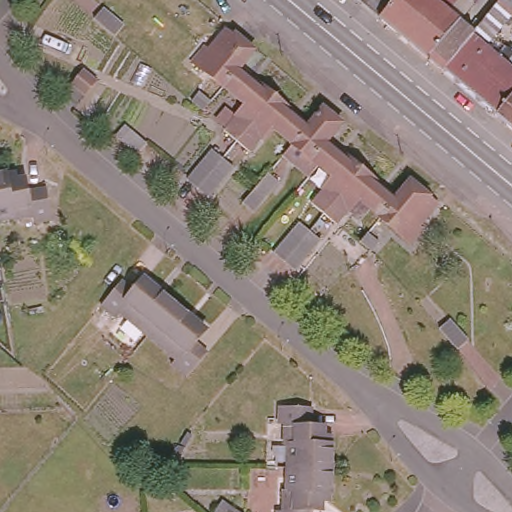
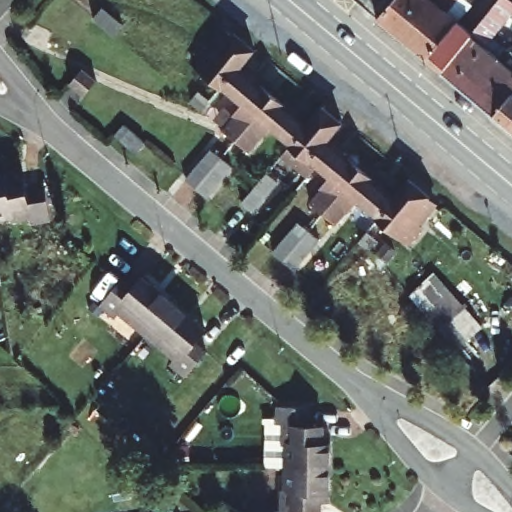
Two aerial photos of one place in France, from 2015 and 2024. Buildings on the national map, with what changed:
unchanged [(354,1),(354,0),(425,0),(396,36),(354,1)]
unchanged [(471,31),(467,37),(439,72),(396,36),(425,0),(454,0),(446,11),(471,31)]
unchanged [(495,32),(510,46),(512,42),(512,89),(492,113),(490,115),(449,80),(439,72),(467,37),(471,31),(496,0),(510,0),(512,1),(512,11),(495,32)]
unchanged [(125,22),(117,34),(95,17),(102,7),(125,22)]
unchanged [(188,53),(200,38),(205,42),(222,22),(227,26),(229,25),(250,43),(235,62),(220,80),(188,53)]
unchanged [(77,44),(70,57),(45,45),(52,32),(77,44)]
unchanged [(236,130),(232,135),(217,123),(240,97),(220,80),(235,62),(270,90),(236,130)]
unchanged [(96,81),(84,95),(70,83),(82,69),(96,81)]
unchanged [(194,99),(202,89),(212,98),(205,107),(194,99)]
unchanged [(511,131),(490,115),(492,113),(512,89),(512,132),(511,131)]
unchanged [(292,132),(287,139),(267,122),(246,146),(232,135),(236,130),(270,90),(304,119),(292,132)]
unchanged [(322,135),(305,155),(312,160),(308,165),(302,172),(277,151),(287,139),(292,132),(304,119),(319,101),(337,116),(322,135)]
unchanged [(147,143),(137,154),(115,135),(125,123),(147,143)]
unchanged [(319,208),(305,196),(326,172),(312,160),(305,155),(322,135),(357,163),(319,208)]
unchanged [(212,146),(232,163),(215,184),(207,195),(199,188),(187,178),(212,146)]
unchanged [(376,210),(355,193),(333,219),(319,208),(357,163),(391,193),(376,210)]
unchanged [(39,180),(45,212),(28,215),(27,210),(5,214),(5,210),(0,211),(0,166),(4,165),(5,173),(17,171),(20,184),(39,180)]
unchanged [(240,203),(266,173),(276,182),(250,212),(240,203)]
unchanged [(391,193),(406,174),(427,191),(427,193),(432,198),(416,218),(420,221),(407,236),(376,210),(391,193)]
unchanged [(275,252),(282,243),(301,221),(321,238),(295,269),(280,256),(275,252)]
unchanged [(379,238),(372,248),(360,239),(369,230),(378,237),(379,238)]
unchanged [(148,325),(122,303),(118,307),(102,294),(122,270),(135,280),(145,268),(175,293),(148,325)]
unchanged [(173,352),(176,348),(148,325),(175,293),(205,319),(195,331),(208,342),(187,365),(173,352)]
unchanged [(450,320),(468,339),(462,345),(457,349),(440,329),(445,324),(450,320)]
unchanged [(318,467),(304,467),(303,467),(299,467),(287,467),(288,459),(287,445),(284,444),(284,423),(279,423),(280,405),(311,406),(310,426),(324,426),(324,435),(332,436),(332,443),(332,468),(318,467)]
unchanged [(277,511),(282,511),(284,489),(287,489),(287,467),(299,467),(303,467),(304,467),(318,467),(332,468),(332,492),(332,499),(323,499),(322,509),(310,508),(309,512),(277,512),(277,511)]
unchanged [(223,500),(241,512),(215,512),(223,500)]

